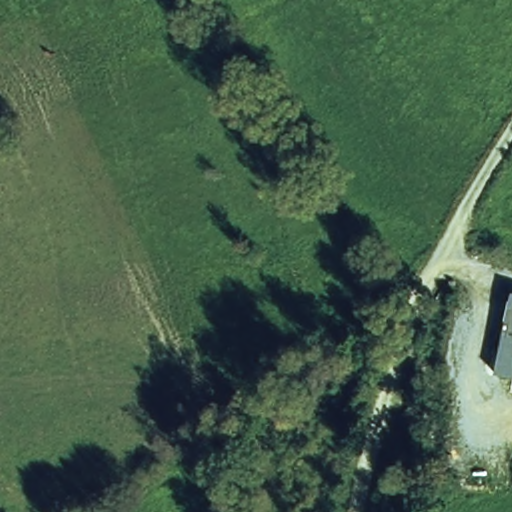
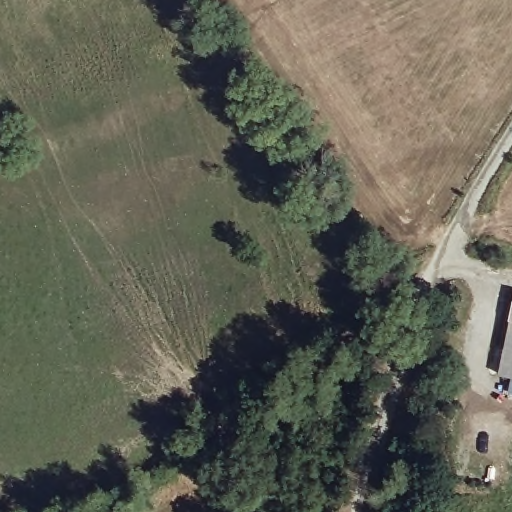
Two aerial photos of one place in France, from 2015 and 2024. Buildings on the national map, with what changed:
unchanged [(499,373),(512,317),(512,376),(499,373)]

